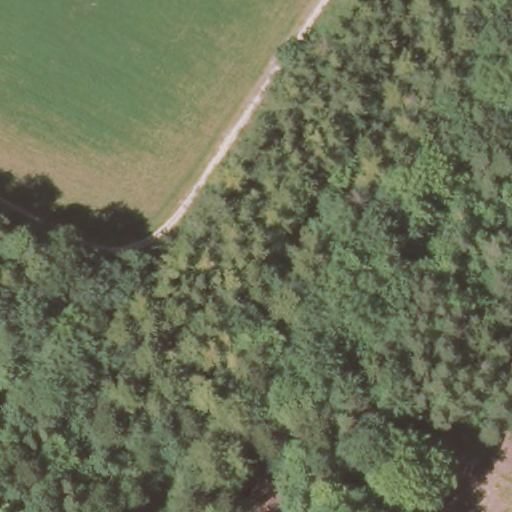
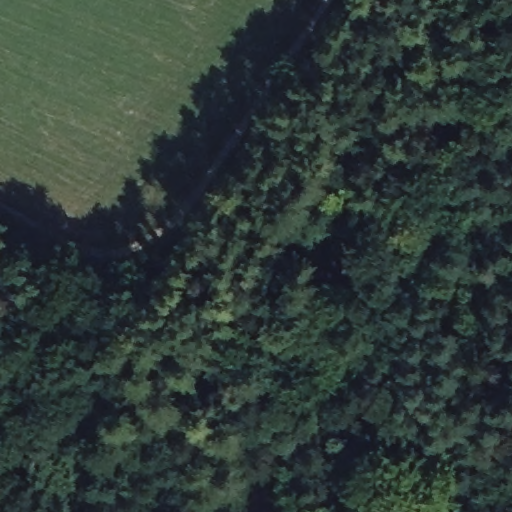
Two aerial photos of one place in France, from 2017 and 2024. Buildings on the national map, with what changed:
unchanged [(256,293),(244,288),(259,267),(269,274),(256,293)]
unchanged [(304,398),(291,417),(271,406),(281,386),(304,398)]
unchanged [(278,493),(299,506),(294,512),(290,512),(273,501),(278,493)]

